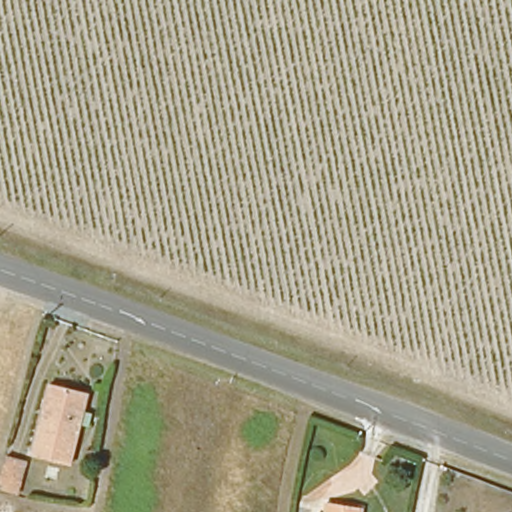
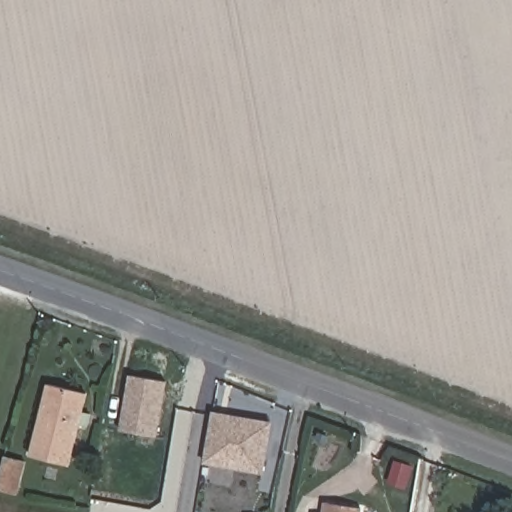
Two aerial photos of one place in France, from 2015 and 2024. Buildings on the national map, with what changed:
new [(166,383),(157,434),(122,428),(130,376),(166,383)]
unchanged [(69,469),(33,460),(51,388),(87,398),(69,469)]
new [(269,425),(261,471),(205,461),(213,416),(269,425)]
unchanged [(24,465),(16,497),(0,493),(0,476),(4,460),(24,465)]
unchanged [(325,506),(328,507),(341,509),(352,510),(360,511),(359,512),(324,512),(325,506)]

